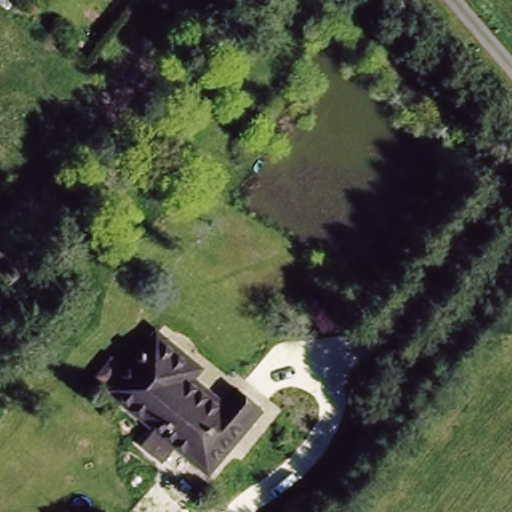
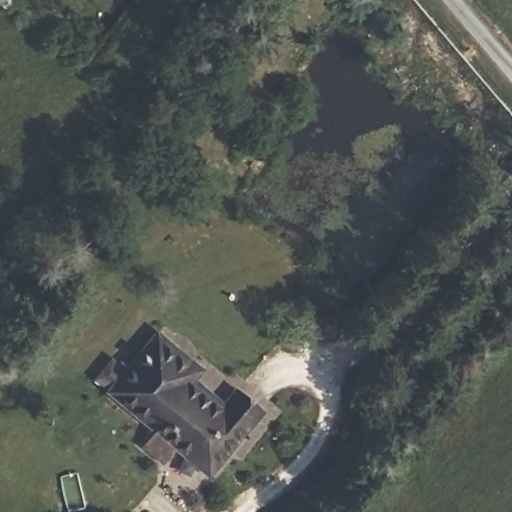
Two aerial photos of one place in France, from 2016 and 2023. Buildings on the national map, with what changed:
unchanged [(116,387),(164,336),(203,371),(187,389),(216,415),(239,388),(263,410),(208,470),(180,444),(164,461),(139,438),(154,421),(116,387)]

